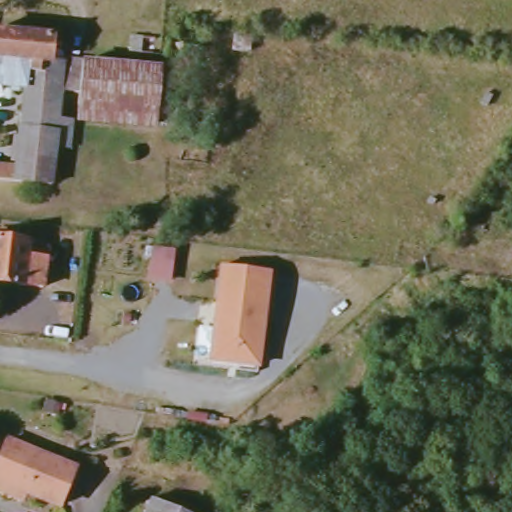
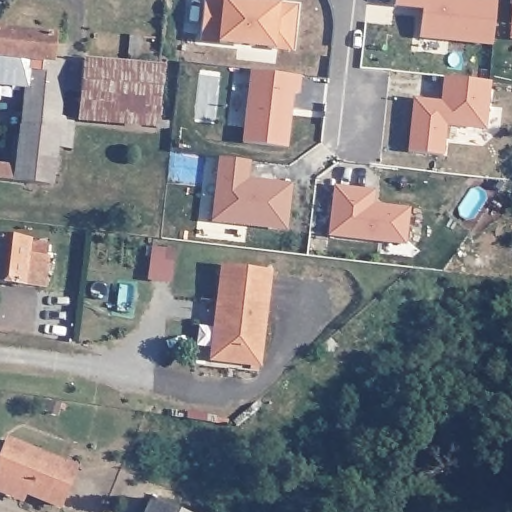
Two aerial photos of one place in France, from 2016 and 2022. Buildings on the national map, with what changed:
new [(217,44),(200,42),(204,0),(231,0),(278,4),(295,6),(292,52),(274,49),(217,44)]
new [(488,0),(497,1),(492,45),(420,38),(421,10),(395,8),(396,0),(488,0)]
new [(512,0),(512,39),(509,39),(512,0)]
unchanged [(53,40),(52,55),(86,59),(82,87),(64,84),(59,122),(76,124),(71,155),(53,154),(48,189),(0,183),(0,165),(16,165),(26,91),(0,88),(0,33),(53,40)]
unchanged [(157,69),(153,130),(79,121),(82,87),(86,59),(157,69)]
new [(301,76),(299,93),(294,93),(288,147),(243,143),(251,72),(301,76)]
new [(489,83),(485,128),(444,124),(441,154),(410,151),(415,99),(442,103),(444,78),(489,83)]
new [(285,229),(213,220),(221,159),(249,162),(247,180),(290,185),(285,229)]
new [(410,209),(405,245),(328,237),(334,185),(375,189),(374,204),(410,209)]
unchanged [(46,250),(40,293),(0,287),(0,245),(46,250)]
unchanged [(271,274),(259,368),(212,363),(223,269),(271,274)]
unchanged [(69,471),(51,512),(48,512),(0,491),(0,441),(69,471)]
unchanged [(152,499),(184,512),(146,512),(152,499)]

